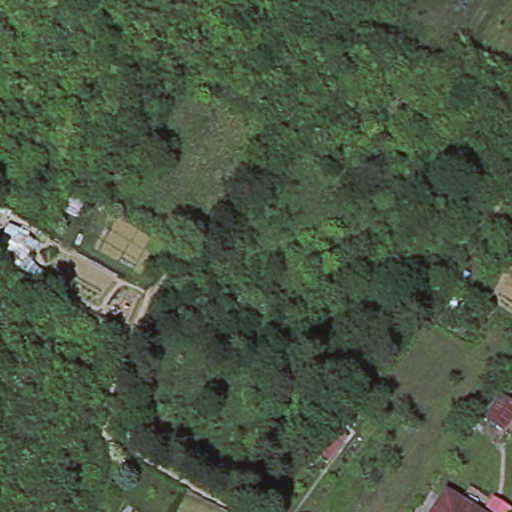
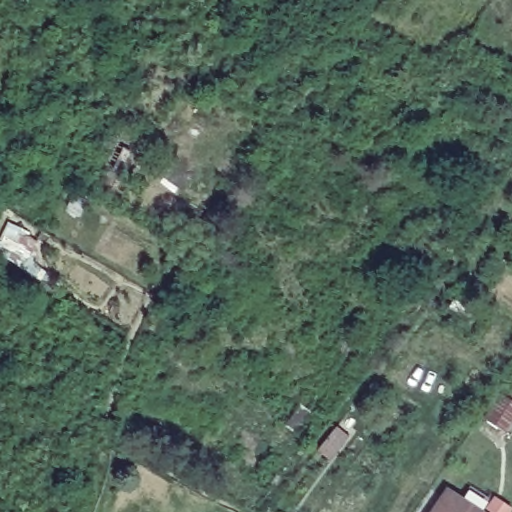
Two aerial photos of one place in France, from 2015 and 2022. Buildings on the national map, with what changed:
unchanged [(506,404),(491,426),(475,415),(489,393),(506,404)]
unchanged [(449,489),(482,510),(493,493),(503,500),(494,512),(434,512),(449,489)]

